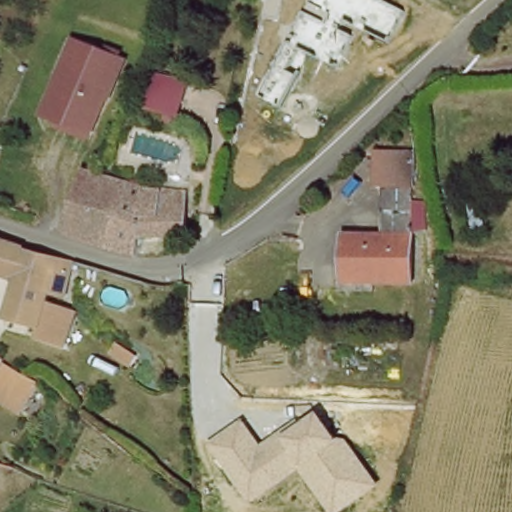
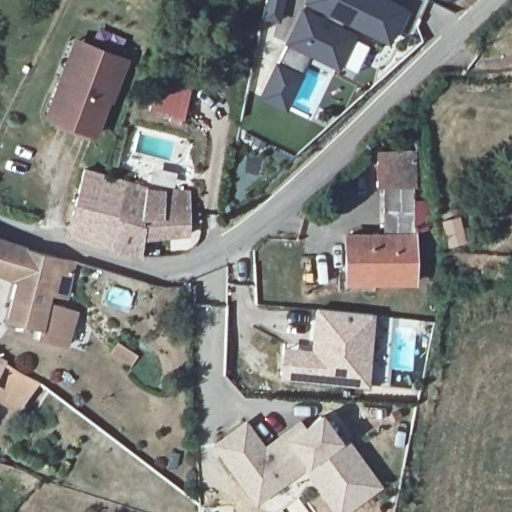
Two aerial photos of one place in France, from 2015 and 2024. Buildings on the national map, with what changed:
new [(274,62),(300,6),(324,18),(326,15),(303,4),(305,0),(391,0),(408,8),(389,46),(342,24),(340,27),(357,37),(354,41),(367,49),(355,73),(340,66),(338,71),(307,57),(300,73),(303,75),(284,112),(256,98),(274,62)]
unchanged [(108,102),(105,101),(92,137),(66,127),(43,120),(46,113),(59,79),(72,42),(82,46),(123,62),(108,102)]
unchanged [(187,85),(174,122),(142,110),(155,75),(187,85)]
unchanged [(418,191),(404,190),(404,285),(337,285),(336,239),(374,239),(373,190),(366,190),(366,156),(408,157),(418,191)]
unchanged [(125,194),(111,248),(67,235),(82,173),(100,179),(127,186),(125,194)]
unchanged [(145,190),(162,192),(175,191),(190,191),(187,232),(144,235),(139,255),(136,254),(127,252),(111,248),(125,194),(127,186),(145,190)]
unchanged [(20,253),(25,255),(42,260),(72,267),(64,308),(80,313),(68,350),(40,341),(42,332),(4,323),(12,288),(0,282),(0,246),(20,253)]
new [(311,349),(315,308),(376,313),(368,385),(278,378),(282,347),(311,349)]
unchanged [(33,430),(0,405),(0,363),(52,401),(53,402),(33,430)]
unchanged [(301,420),(306,427),(325,415),(346,442),(381,488),(350,512),(333,512),(305,472),(257,506),(213,445),(246,421),(266,447),(301,420)]

